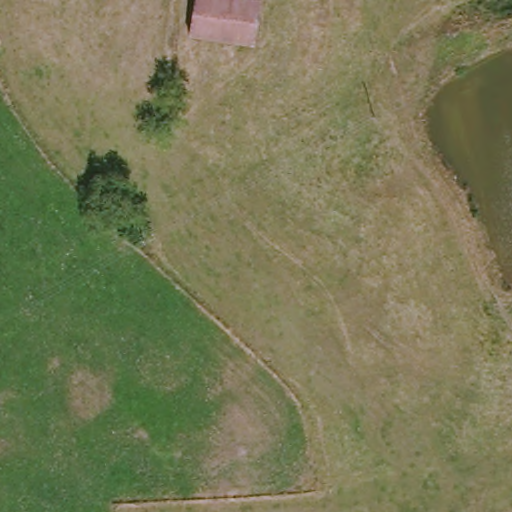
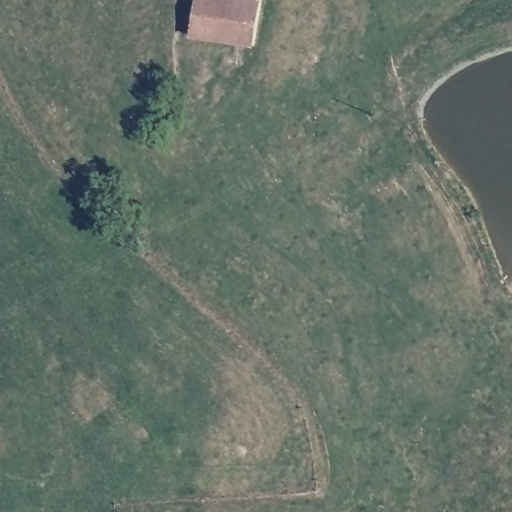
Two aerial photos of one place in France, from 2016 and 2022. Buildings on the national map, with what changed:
unchanged [(198,33),(198,0),(262,0),(263,44),(206,39),(206,34),(198,33)]

